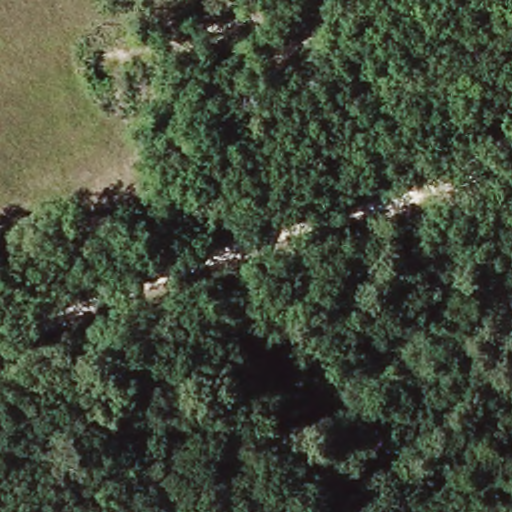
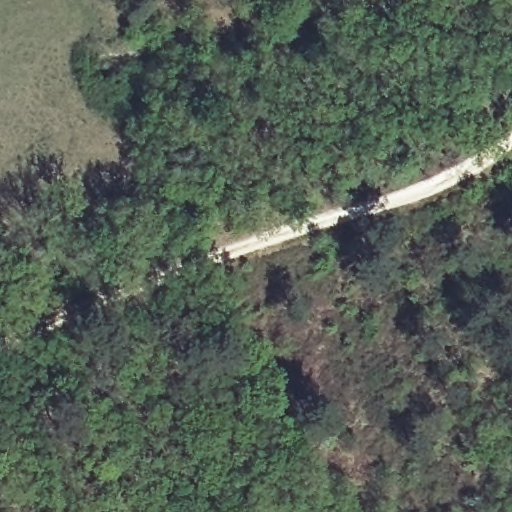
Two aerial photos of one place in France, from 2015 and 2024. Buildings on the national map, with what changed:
[]

